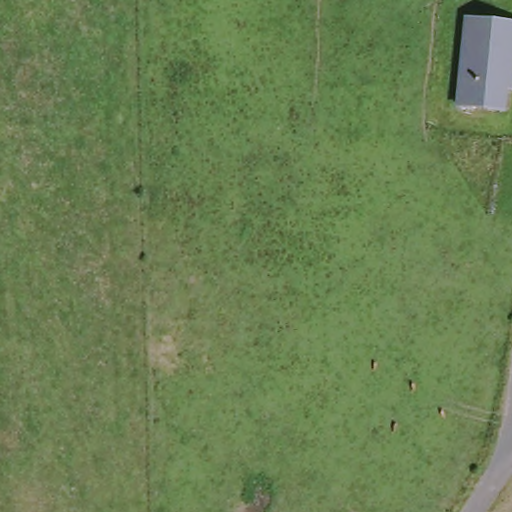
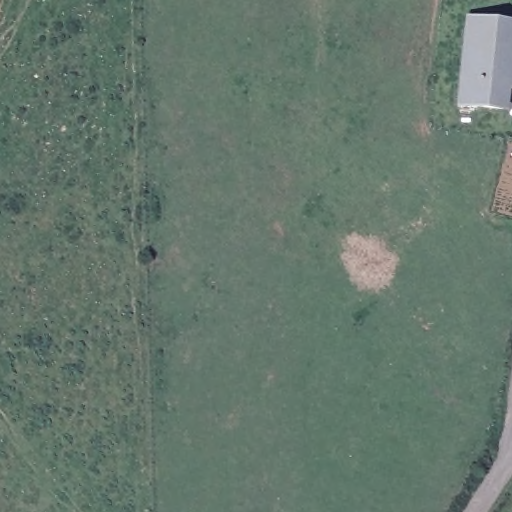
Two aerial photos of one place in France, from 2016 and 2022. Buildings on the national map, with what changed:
unchanged [(507,112),(461,107),(471,22),(512,26),(512,91),(508,90),(507,112)]

